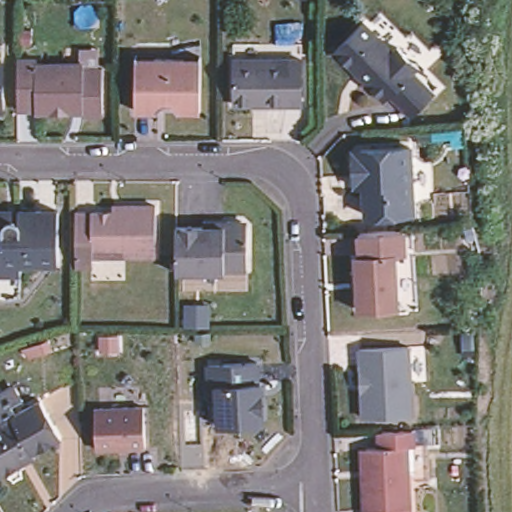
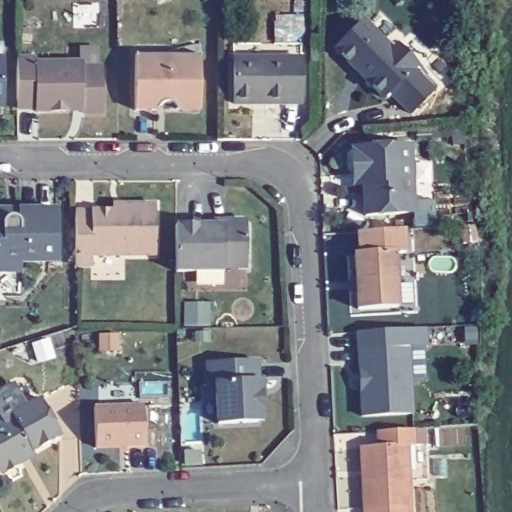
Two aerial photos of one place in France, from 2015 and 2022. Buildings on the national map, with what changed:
unchanged [(334,50),(363,22),(392,51),(397,46),(417,66),(412,71),(433,92),(410,115),(389,93),(384,99),(334,50)]
unchanged [(176,111),(173,107),(169,105),(168,104),(163,105),(159,107),(156,111),(134,111),(134,59),(171,60),(171,52),(200,46),(200,66),(199,111),(176,111)]
unchanged [(0,115),(0,49),(2,50),(2,115),(0,115)]
unchanged [(102,114),(81,114),(81,111),(35,112),(34,109),(17,109),(16,59),(35,59),(35,64),(83,64),(83,69),(102,69),(102,114)]
unchanged [(301,104),(265,105),(265,100),(253,100),(253,105),(233,105),(233,60),(301,59),(301,104)]
unchanged [(359,150),(409,147),(413,213),(366,216),(364,186),(354,187),(353,167),(353,157),(359,150)]
unchanged [(113,212),(112,206),(122,206),(155,206),(156,256),(92,256),(92,266),(75,266),(75,212),(113,212)]
unchanged [(0,218),(18,218),(18,211),(58,211),(58,262),(20,262),(20,272),(20,294),(0,294),(0,218)]
unchanged [(203,226),(203,221),(228,221),(241,221),(246,226),(246,270),(223,270),(223,272),(176,272),(175,226),(203,226)]
unchanged [(349,272),(355,272),(354,255),(359,255),(358,234),(404,231),(404,255),(394,255),(398,308),(358,310),(356,295),(351,295),(349,272)]
unchanged [(408,347),(412,415),(362,417),(361,392),(359,372),(359,371),(359,350),(408,347)]
unchanged [(212,364),(262,362),(263,382),(266,382),(268,417),(263,422),(223,425),(208,426),(206,386),(213,385),(212,364)]
unchanged [(6,472),(0,471),(0,422),(40,400),(60,437),(32,452),(34,457),(17,466),(6,472)]
unchanged [(144,447),(95,448),(94,408),(143,406),(144,447)]
unchanged [(363,479),(361,448),(366,447),(378,447),(378,432),(413,431),(414,447),(407,447),(409,508),(410,512),(364,512),(364,511),(363,479)]

